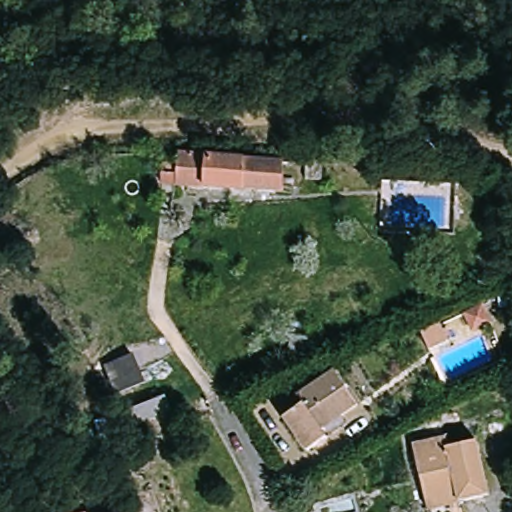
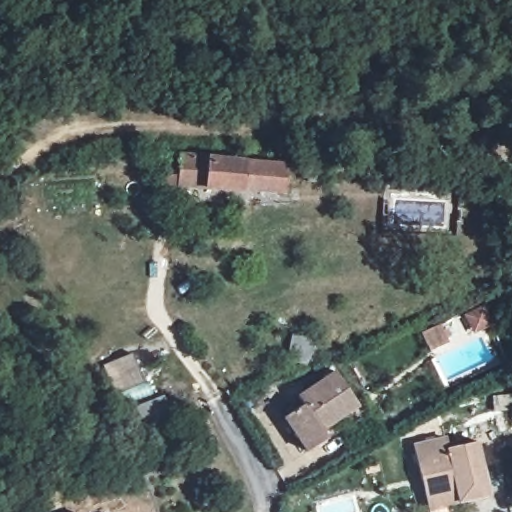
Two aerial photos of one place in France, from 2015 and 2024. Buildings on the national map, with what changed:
unchanged [(246,156),(248,184),(179,186),(179,155),(246,156)]
unchanged [(246,156),(301,155),(300,174),(276,175),(276,183),(248,184),(246,156)]
unchanged [(432,340),(452,329),(460,341),(440,353),(432,340)]
unchanged [(290,358),(293,332),(311,335),(308,360),(290,358)]
unchanged [(331,441),(311,452),(288,413),(307,402),(301,393),(342,370),(365,408),(349,416),(355,428),(331,441)]
unchanged [(126,405),(162,395),(171,413),(136,426),(126,405)]
unchanged [(422,495),(412,446),(445,435),(448,448),(480,440),(492,491),(458,501),(425,508),(422,495)]

